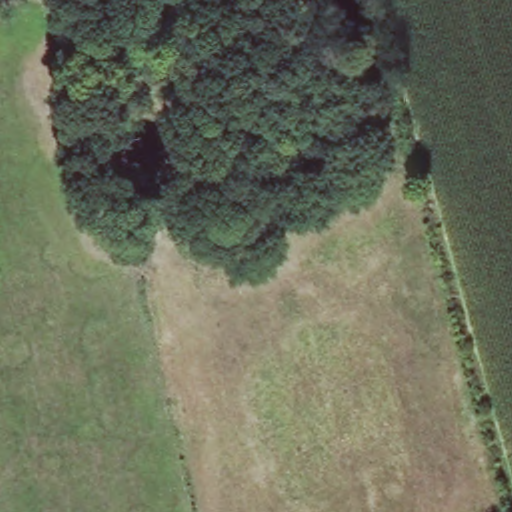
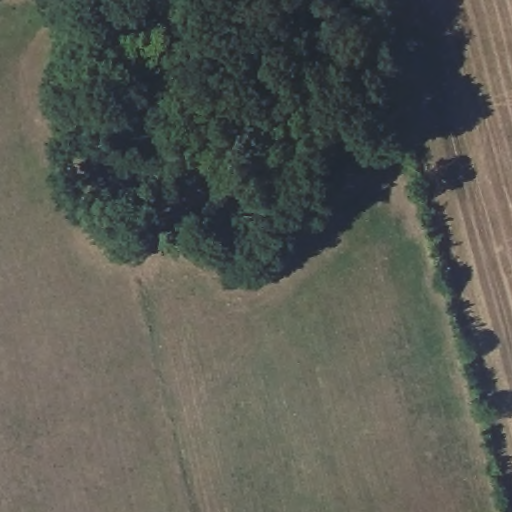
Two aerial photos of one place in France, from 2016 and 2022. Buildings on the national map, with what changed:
unchanged [(167,176),(172,201),(141,206),(136,180),(167,176)]

